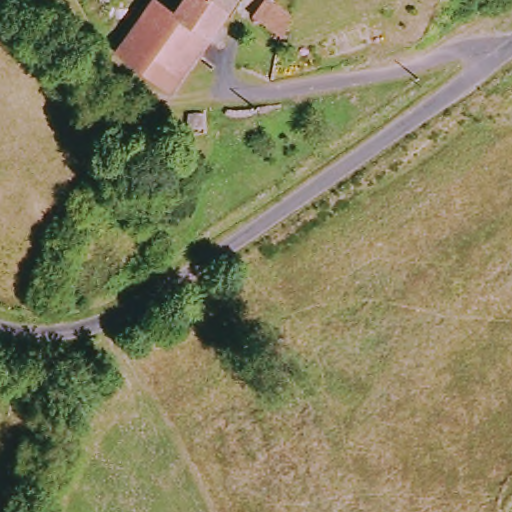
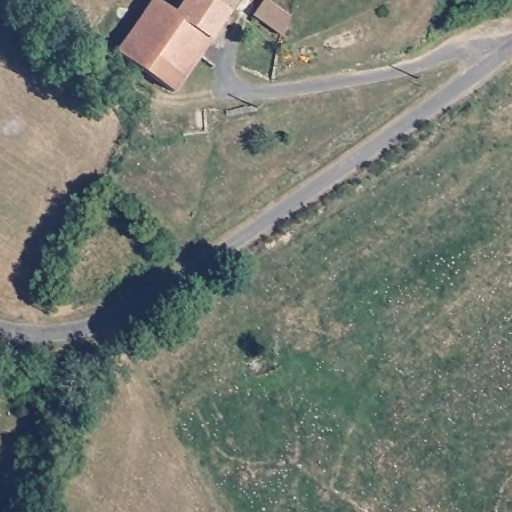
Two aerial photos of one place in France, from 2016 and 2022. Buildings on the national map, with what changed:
unchanged [(161,2),(183,18),(194,0),(244,0),(233,14),(178,95),(125,58),(161,2)]
unchanged [(279,8),(272,21),(259,12),(267,0),(279,8)]

